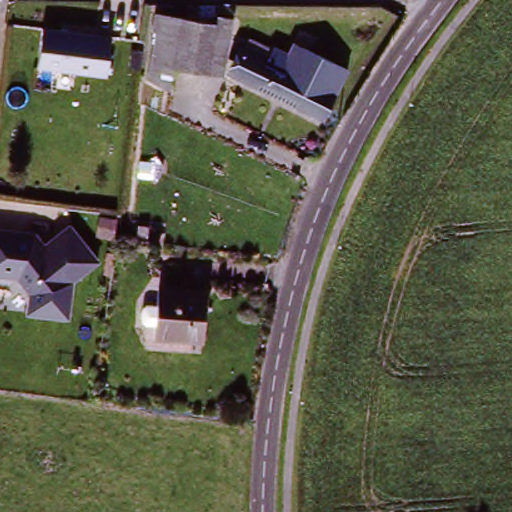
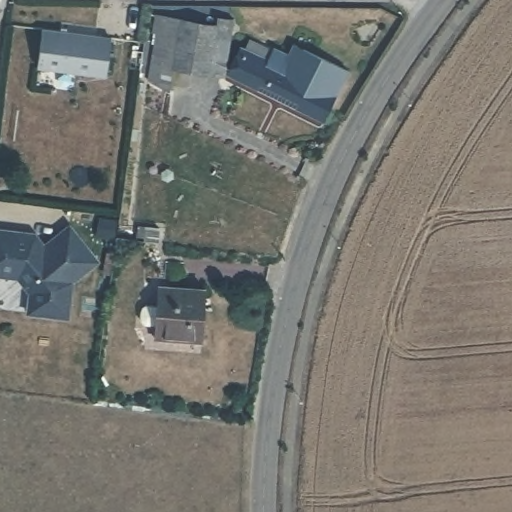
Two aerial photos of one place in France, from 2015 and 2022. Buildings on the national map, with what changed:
unchanged [(170,69),(166,91),(146,81),(154,35),(148,34),(150,18),(209,23),(209,16),(228,18),(217,76),(170,69)]
unchanged [(36,65),(41,27),(109,36),(105,73),(36,65)]
unchanged [(227,76),(244,36),(268,45),(270,42),(287,50),(281,65),(333,87),(319,116),(227,76)]
unchanged [(73,320),(26,316),(28,282),(0,280),(0,231),(49,236),(70,223),(100,261),(75,283),(73,320)]
unchanged [(155,322),(139,320),(141,300),(156,302),(157,285),(204,288),(200,339),(154,335),(155,322)]

